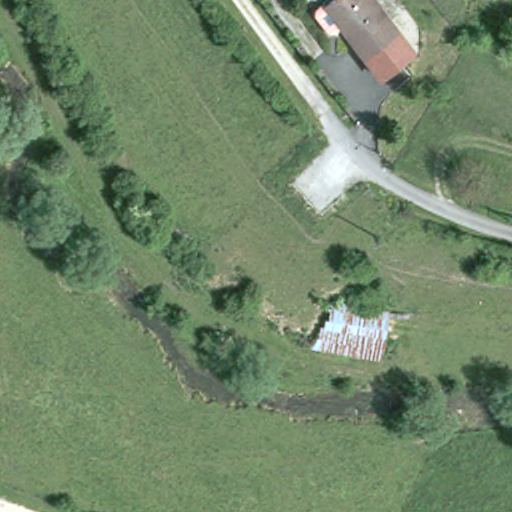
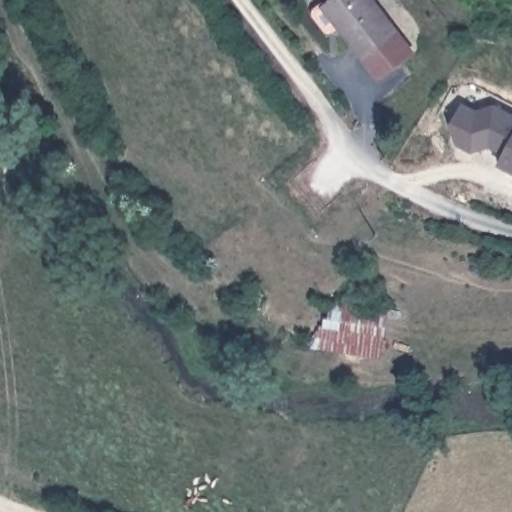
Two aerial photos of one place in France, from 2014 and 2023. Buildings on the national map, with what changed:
unchanged [(379,77),(339,26),(328,32),(312,9),(325,0),(376,0),(418,49),(379,77)]
new [(504,154),(490,147),(471,153),(457,145),(450,126),(462,104),(475,110),(493,105),(512,114),(512,171),(499,164),(504,154)]
unchanged [(339,303),(391,312),(381,358),(313,345),(324,327),(338,305),(339,303)]

